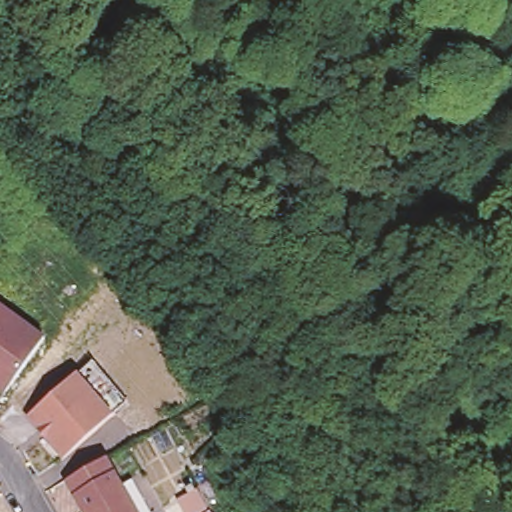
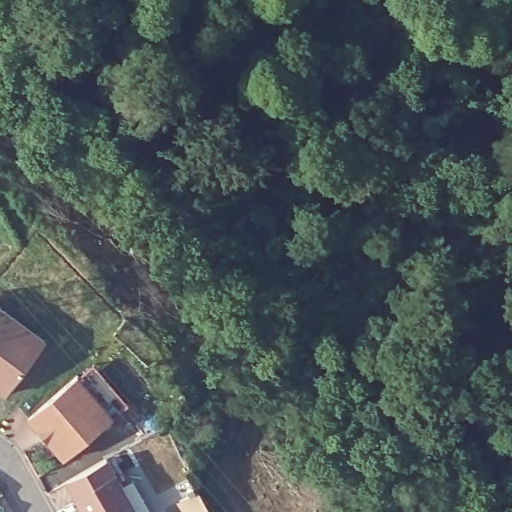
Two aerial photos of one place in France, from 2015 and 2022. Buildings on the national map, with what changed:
unchanged [(48,337),(40,347),(0,318),(0,301),(48,337)]
unchanged [(40,347),(9,391),(0,384),(0,318),(40,347)]
unchanged [(75,376),(91,396),(106,382),(127,407),(111,420),(62,461),(25,420),(75,376)]
unchanged [(147,512),(87,512),(86,512),(81,512),(65,483),(103,462),(120,491),(132,485),(147,512)]

